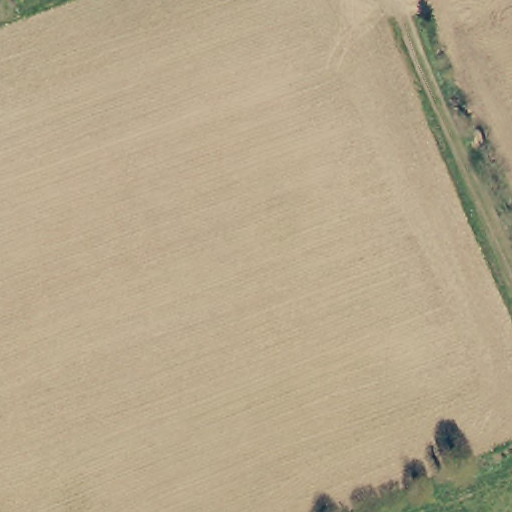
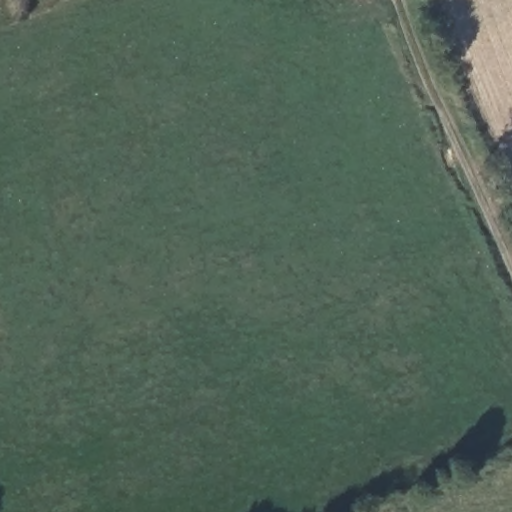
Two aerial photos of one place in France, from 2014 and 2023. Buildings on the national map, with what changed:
[]

